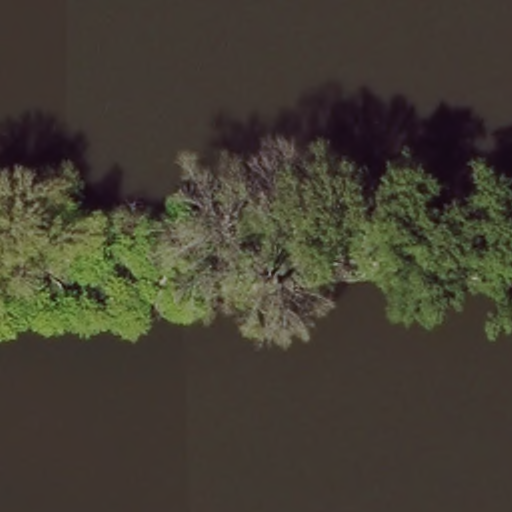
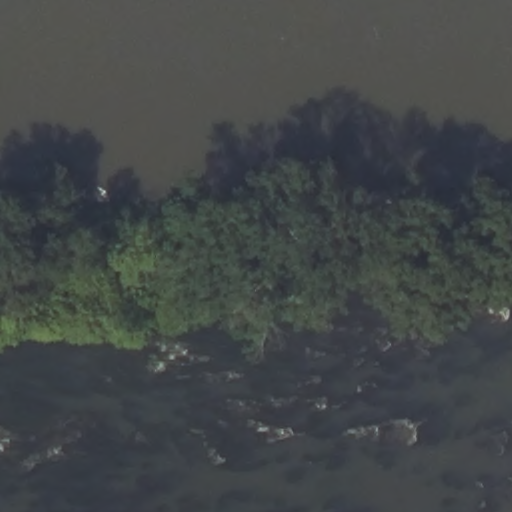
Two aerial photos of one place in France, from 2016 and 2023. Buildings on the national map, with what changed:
[]

